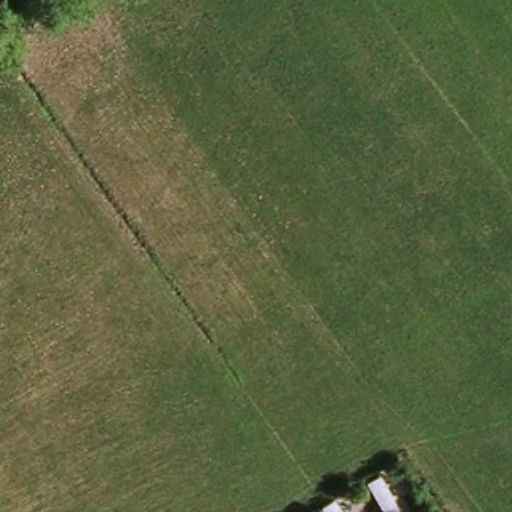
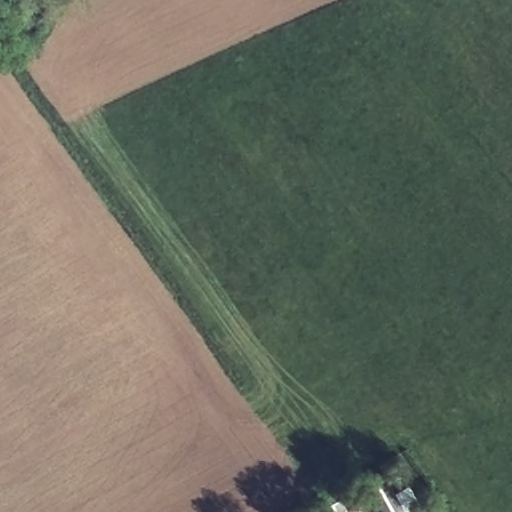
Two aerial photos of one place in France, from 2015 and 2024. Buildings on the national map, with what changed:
[]

